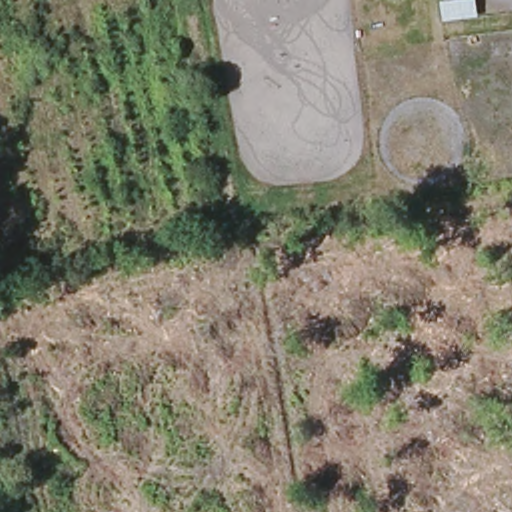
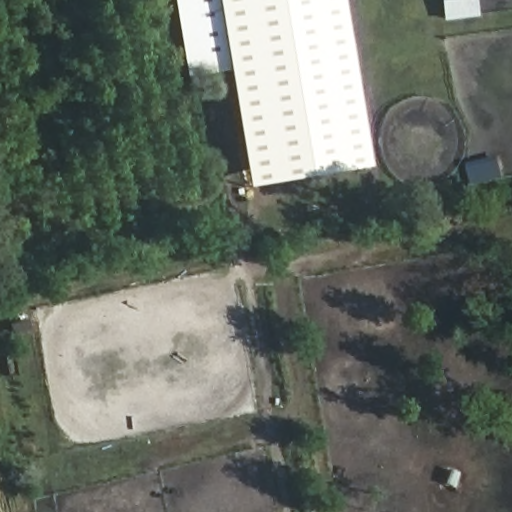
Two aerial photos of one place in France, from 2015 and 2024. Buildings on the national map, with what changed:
new [(226,69),(186,76),(173,0),(214,0),(226,69)]
new [(366,167),(246,186),(214,0),(340,0),(366,167)]

